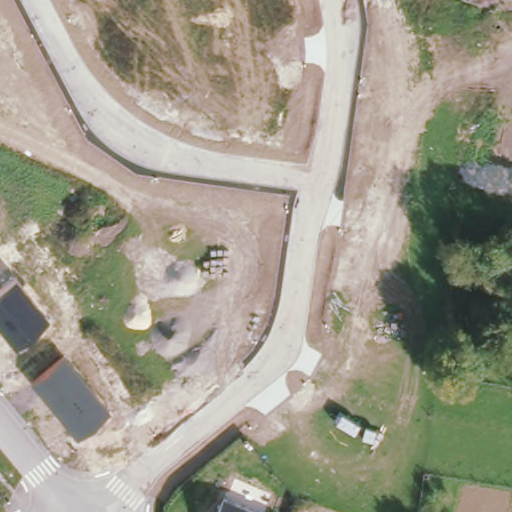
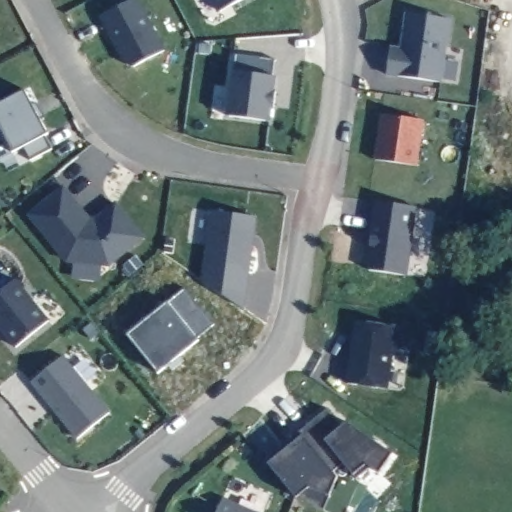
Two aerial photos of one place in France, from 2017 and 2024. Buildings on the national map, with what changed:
new [(138,0),(165,51),(134,66),(127,64),(101,16),(131,0),(138,0)]
new [(215,0),(242,0),(221,11),(215,0)]
new [(390,48),(402,49),(407,12),(450,18),(440,81),(386,73),(390,48)]
new [(277,56),(274,73),(277,73),(275,89),(277,89),(275,106),(272,106),(270,121),(229,115),(237,50),(277,56)]
new [(32,105),(35,105),(43,118),(46,117),(54,131),(51,134),(57,146),(35,158),(29,145),(13,152),(0,127),(0,103),(25,90),(32,105)]
new [(380,114),(423,120),(417,165),(374,158),(380,114)]
new [(89,216),(99,217),(116,202),(145,236),(109,265),(68,260),(30,214),(64,187),(89,216)]
new [(405,275),(369,269),(365,263),(367,245),(369,245),(374,215),(375,216),(378,201),(415,206),(405,275)]
new [(213,211),(256,217),(244,308),(202,280),(213,211)]
unchanged [(15,348),(0,329),(0,294),(17,280),(49,320),(15,348)]
new [(214,324),(196,339),(199,341),(158,374),(127,335),(167,302),(184,290),(214,324)]
new [(395,325),(387,388),(347,382),(356,320),(395,325)]
unchanged [(77,439),(32,384),(65,357),(110,412),(77,439)]
new [(340,427),(346,422),(392,454),(380,473),(369,468),(356,479),(354,475),(343,463),(332,472),(337,477),(330,496),(324,510),(302,494),(297,498),(267,464),(301,436),(298,433),(326,409),(340,427)]
unchanged [(256,512),(217,512),(224,498),(256,512)]

